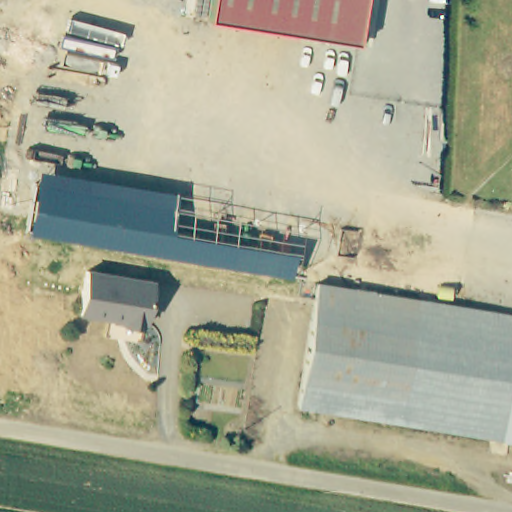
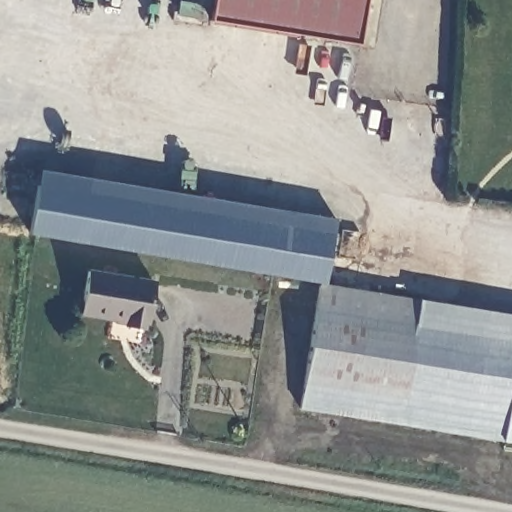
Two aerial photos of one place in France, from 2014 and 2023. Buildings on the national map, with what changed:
unchanged [(357,43),(209,20),(212,0),(364,0),(357,43)]
unchanged [(175,193),(169,229),(299,253),(294,277),(28,234),(39,170),(175,193)]
new [(296,269),(299,253),(169,229),(175,193),(333,220),(323,282),(294,277),(296,269)]
unchanged [(156,284),(151,323),(149,329),(136,328),(132,321),(89,314),(96,275),(156,284)]
unchanged [(512,440),(489,436),(304,410),(319,314),(323,288),(512,319),(512,440)]

